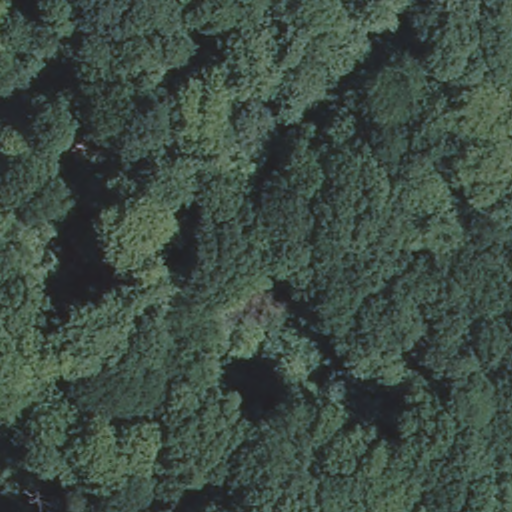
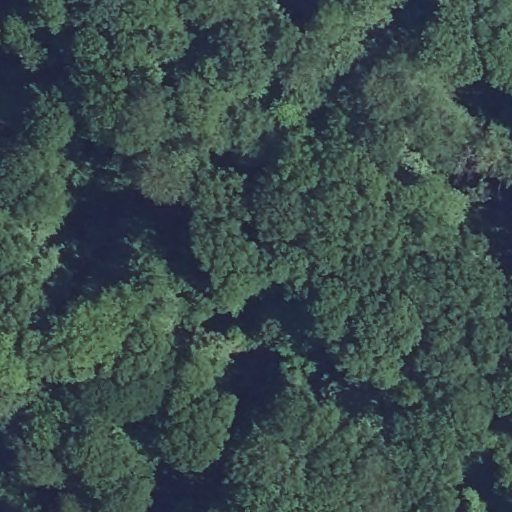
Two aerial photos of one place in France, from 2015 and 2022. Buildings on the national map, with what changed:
[]

